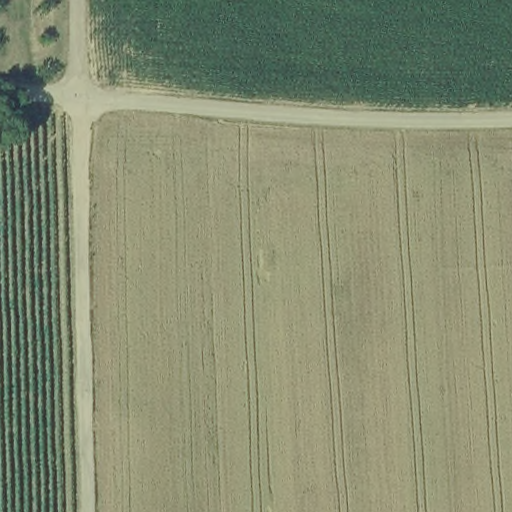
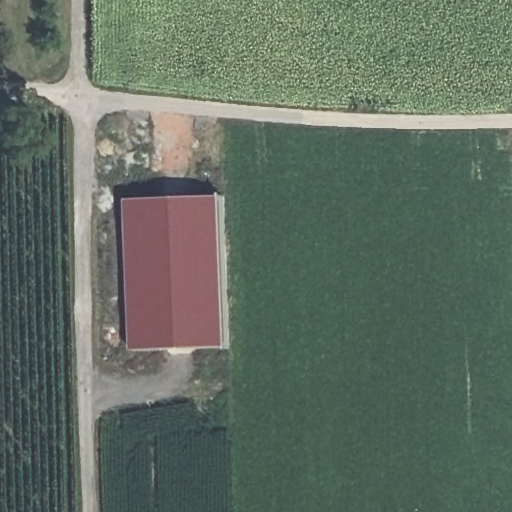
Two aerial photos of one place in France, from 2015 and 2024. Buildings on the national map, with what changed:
new [(223,199),(230,348),(135,352),(130,201),(223,199)]

